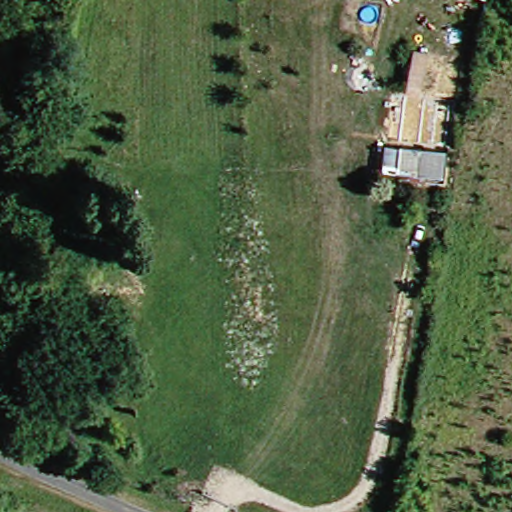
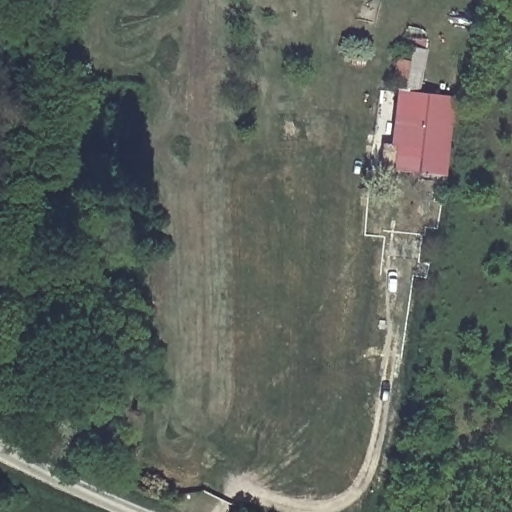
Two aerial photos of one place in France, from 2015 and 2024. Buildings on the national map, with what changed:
new [(396,90),(402,90),(410,47),(426,50),(417,92),(453,96),(446,148),(390,141),(396,90)]
demolished [(419,55),(411,95),(398,91),(407,52),(419,55)]
new [(443,179),(380,171),(385,140),(446,148),(443,179)]
demolished [(416,151),(413,174),(393,171),(396,149),(416,151)]

